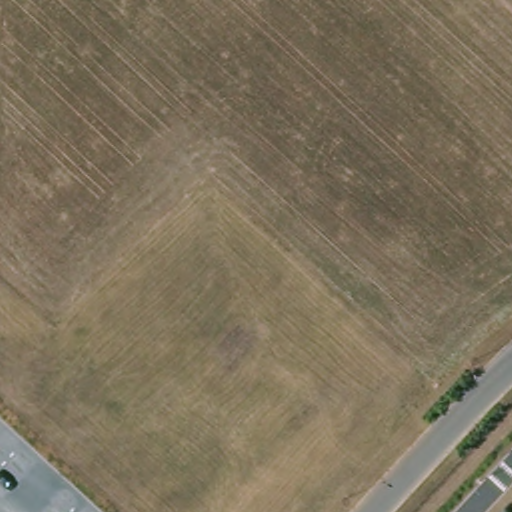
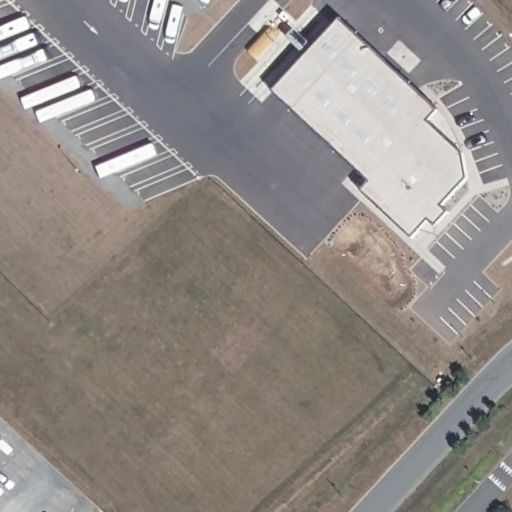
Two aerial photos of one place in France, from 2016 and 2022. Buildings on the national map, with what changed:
new [(363,191),(372,181),(274,90),(340,19),(439,110),(429,121),(465,154),(469,178),(443,205),(449,211),(437,225),(430,220),(413,238),(363,191)]

